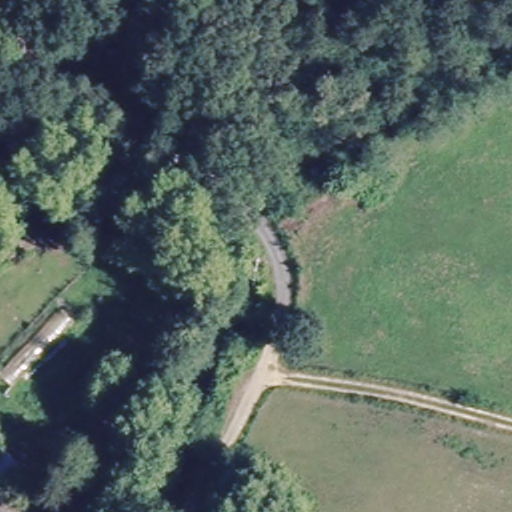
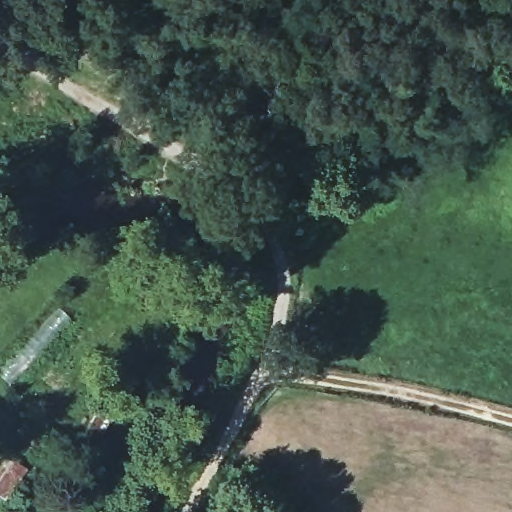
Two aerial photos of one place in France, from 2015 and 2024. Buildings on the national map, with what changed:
unchanged [(0,448),(1,447),(18,463),(1,489),(0,489),(0,448)]

